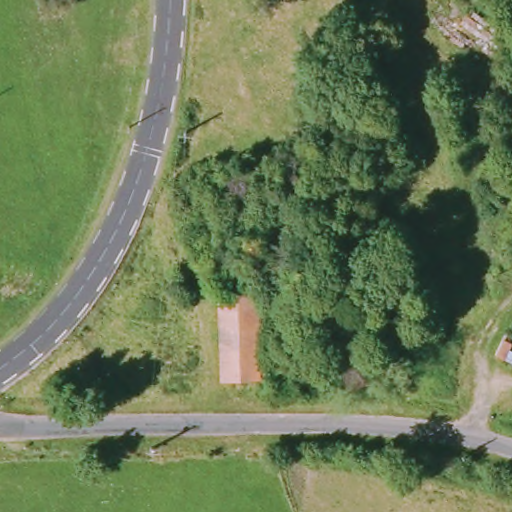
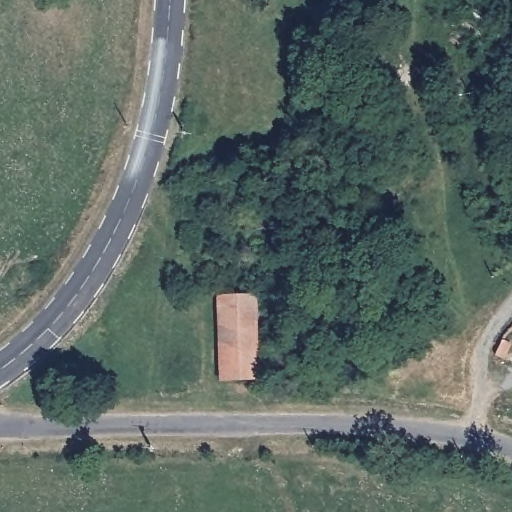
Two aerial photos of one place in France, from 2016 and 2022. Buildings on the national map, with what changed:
unchanged [(212,298),(252,297),(258,379),(218,382),(212,298)]
unchanged [(512,342),(512,353),(508,352),(512,342)]

